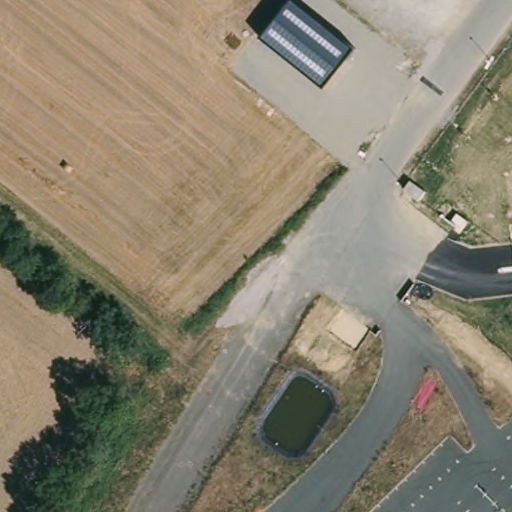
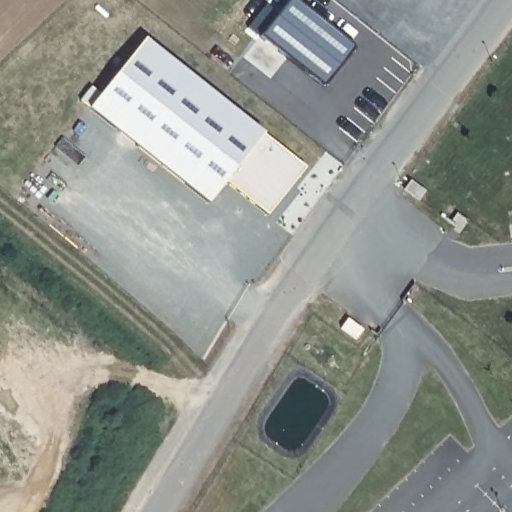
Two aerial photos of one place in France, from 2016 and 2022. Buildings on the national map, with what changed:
unchanged [(356,49),(323,89),(262,38),(293,1),(356,49)]
new [(92,90),(101,97),(145,42),(306,170),(268,218),(226,185),(209,206),(81,104),(92,90)]

